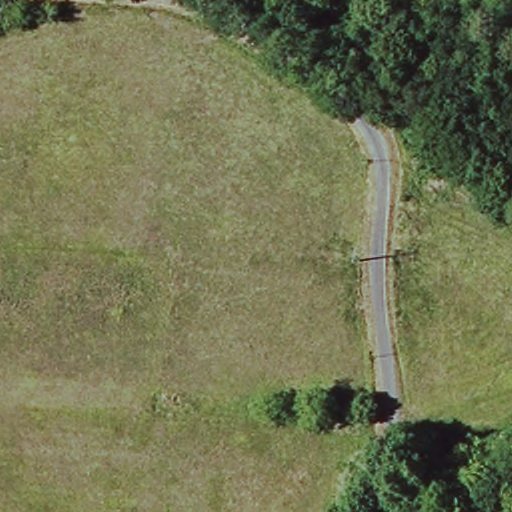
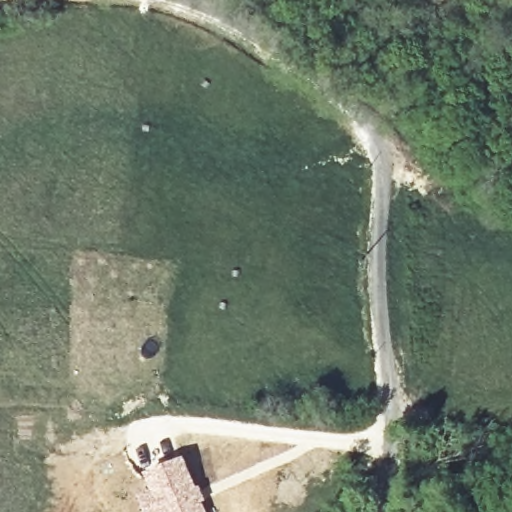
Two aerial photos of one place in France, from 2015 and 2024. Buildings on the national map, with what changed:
new [(183,458),(206,512),(156,512),(143,475),(183,458)]

